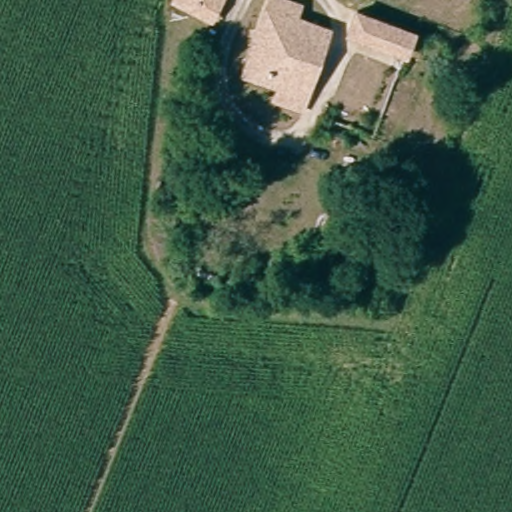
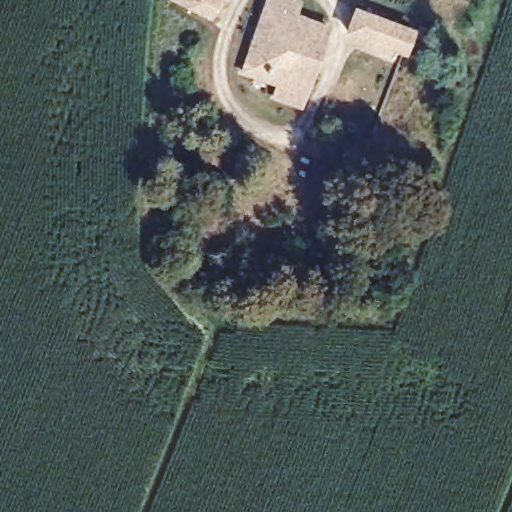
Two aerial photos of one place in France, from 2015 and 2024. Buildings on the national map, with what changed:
unchanged [(219,6),(209,19),(182,0),(223,0),(219,6)]
unchanged [(268,84),(270,76),(245,67),(269,0),(298,0),(295,9),(325,23),(301,95),(268,84)]
unchanged [(413,28),(405,51),(350,28),(360,7),(413,28)]

